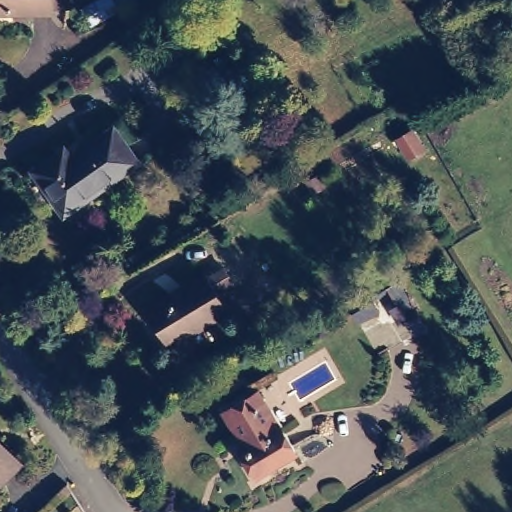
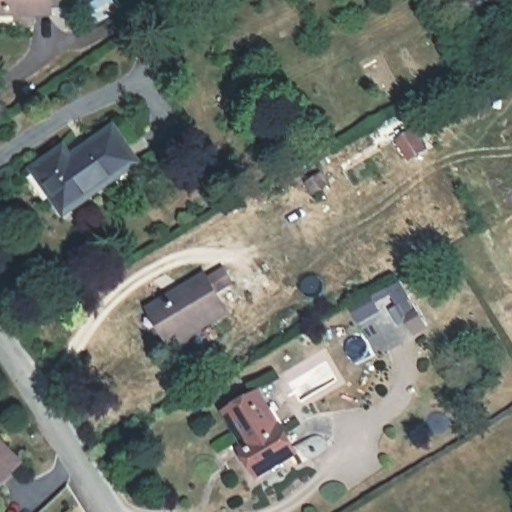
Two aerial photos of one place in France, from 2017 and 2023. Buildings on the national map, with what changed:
unchanged [(9,2),(9,10),(0,10),(0,0),(67,0),(67,3),(48,2),(9,2)]
unchanged [(81,3),(88,0),(140,0),(88,25),(81,3)]
unchanged [(61,141),(67,150),(115,119),(139,154),(62,205),(32,161),(61,141)]
unchanged [(407,122),(417,139),(404,147),(394,130),(407,122)]
unchanged [(314,164),(321,175),(306,183),(299,172),(314,164)]
unchanged [(205,272),(207,275),(225,264),(233,278),(215,288),(227,307),(170,341),(147,306),(171,292),(205,272)]
unchanged [(256,385),(276,417),(279,415),(297,444),(253,470),(236,440),(244,436),(225,403),(256,385)]
unchanged [(0,467),(0,449),(9,458),(0,467)]

